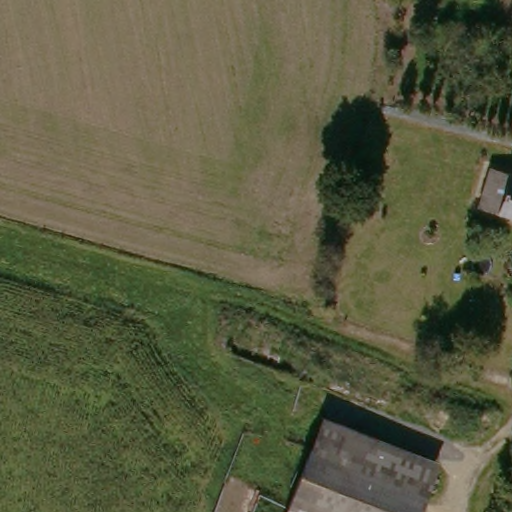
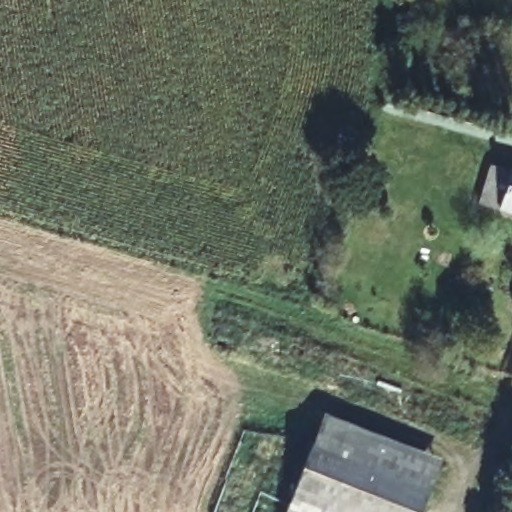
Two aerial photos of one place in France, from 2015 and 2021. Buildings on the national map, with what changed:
unchanged [(481,211),(483,202),(492,172),(512,177),(512,220),(485,212),(481,211)]
unchanged [(438,467),(421,512),(349,512),(295,489),(323,419),(438,467)]
unchanged [(349,512),(285,512),(295,489),(349,512)]

